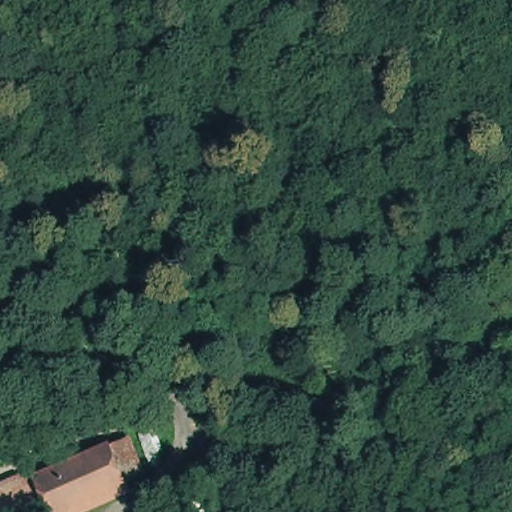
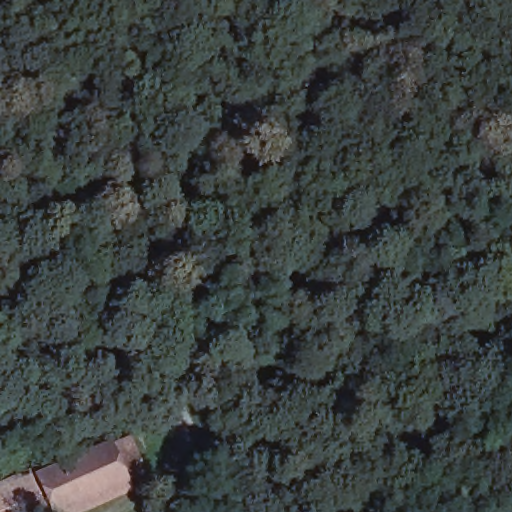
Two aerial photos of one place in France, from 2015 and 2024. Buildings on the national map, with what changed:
unchanged [(119,467),(123,478),(44,512),(0,512),(0,480),(29,467),(34,473),(116,437),(126,462),(119,467)]

